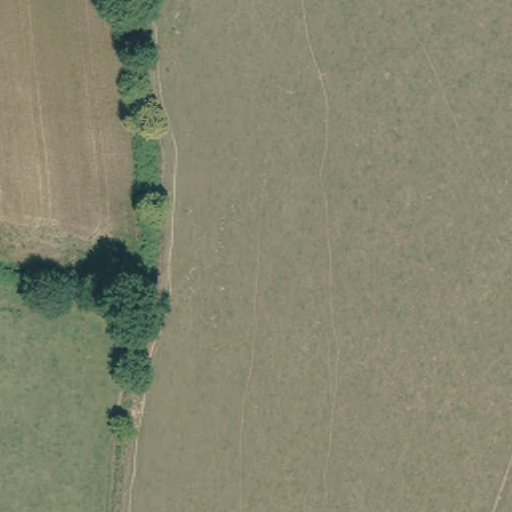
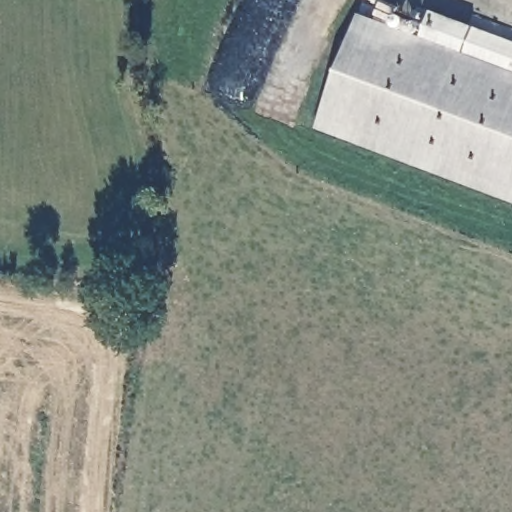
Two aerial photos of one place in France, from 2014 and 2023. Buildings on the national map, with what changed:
new [(358,15),(421,37),(430,11),(512,42),(512,204),(315,130),(358,15)]

